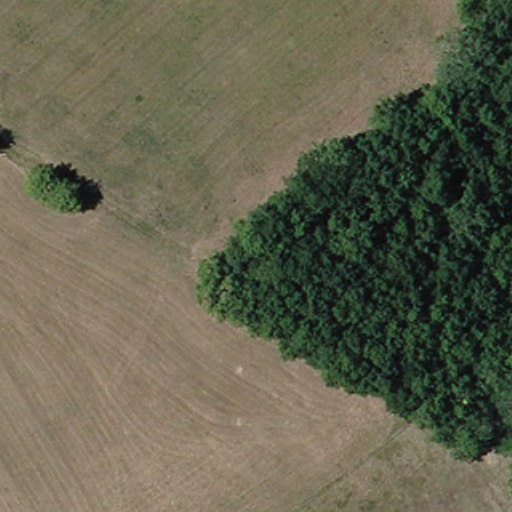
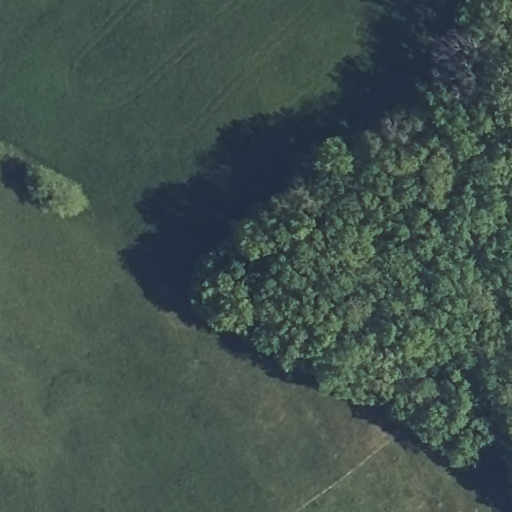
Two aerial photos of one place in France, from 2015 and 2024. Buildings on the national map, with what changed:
[]

